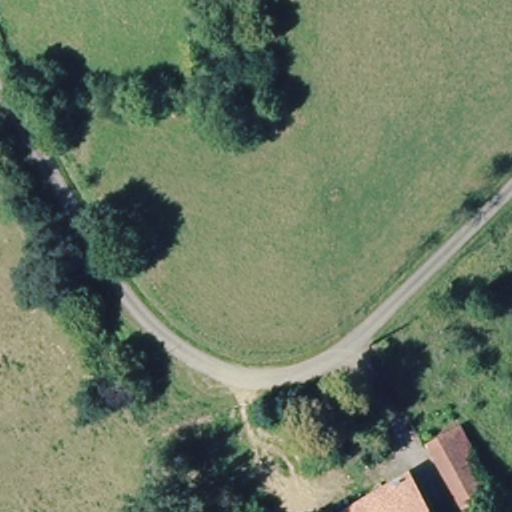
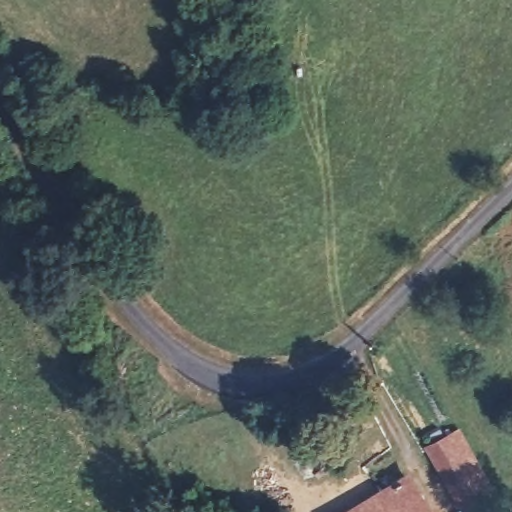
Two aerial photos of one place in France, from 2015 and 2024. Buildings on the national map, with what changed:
unchanged [(468,510),(430,446),(461,430),(497,493),(468,510)]
unchanged [(407,476),(434,512),(358,512),(407,476)]

